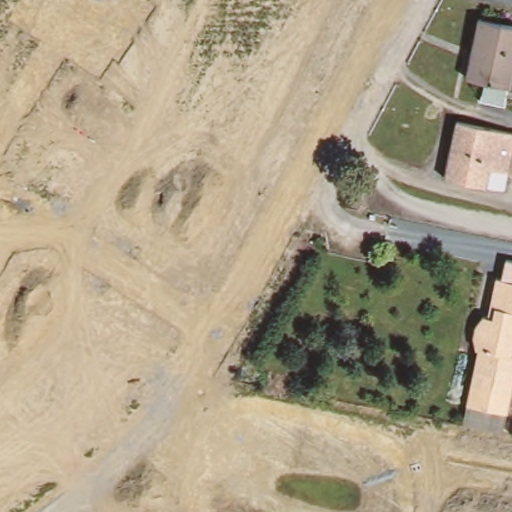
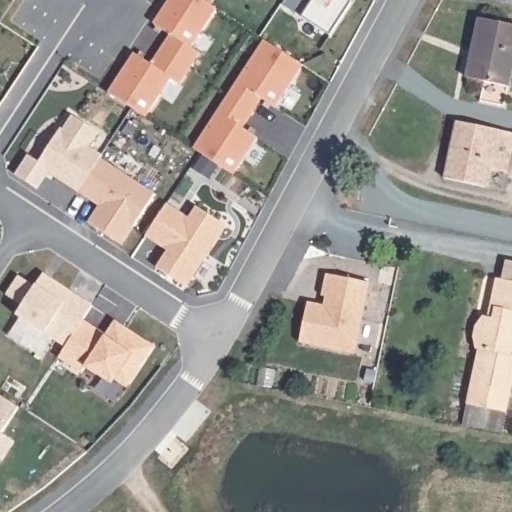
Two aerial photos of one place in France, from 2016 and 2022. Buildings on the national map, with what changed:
new [(149,67),(168,38),(151,27),(169,0),(196,0),(214,12),(189,50),(198,56),(177,87),(169,81),(143,119),(106,95),(132,56),(149,67)]
new [(325,38),(296,19),(308,2),(305,0),(340,0),(347,5),(325,38)]
unchanged [(512,67),(507,89),(466,80),(479,19),(512,26),(512,67)]
new [(190,150),(261,43),(299,68),(272,110),(258,101),(239,130),(254,140),(229,176),(215,167),(208,179),(192,168),(200,157),(190,150)]
new [(26,156),(36,163),(59,129),(61,131),(70,116),(96,134),(87,148),(100,157),(98,159),(76,193),(46,173),(35,190),(13,176),(26,156)]
unchanged [(512,176),(511,179),(492,175),(489,190),(445,181),(458,125),(512,137),(512,176)]
new [(98,159),(153,196),(119,246),(85,224),(96,207),(76,193),(98,159)]
new [(153,269),(164,252),(142,237),(164,205),(186,219),(193,208),(224,228),(183,289),(171,280),(166,277),(153,269)]
new [(325,306),(327,297),(323,296),(328,274),(371,284),(357,354),(301,343),(309,303),(325,306)]
new [(37,289),(41,282),(46,276),(53,281),(95,308),(85,322),(68,349),(18,317),(24,308),(9,297),(21,278),(37,289)]
unchanged [(512,352),(512,376),(509,389),(505,409),(465,401),(476,346),(474,346),(471,333),(473,323),(481,313),(490,315),(493,305),(488,304),(493,279),(512,283),(512,348),(511,352),(512,352)]
new [(121,385),(117,383),(114,387),(88,370),(84,376),(60,360),(68,349),(85,322),(108,337),(111,332),(117,323),(125,329),(156,349),(131,387),(129,391),(121,385)]
new [(22,409),(4,435),(17,443),(5,461),(0,458),(0,394),(22,409)]

